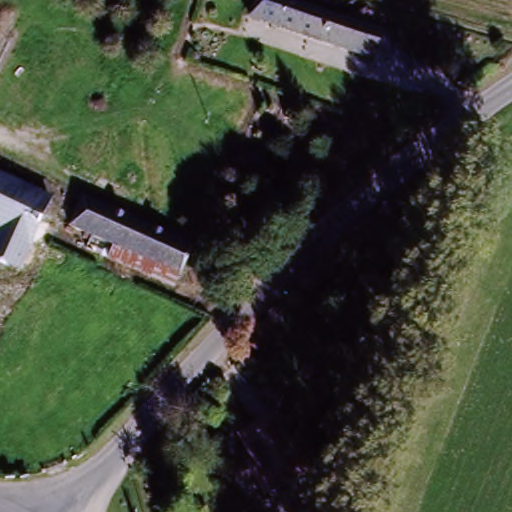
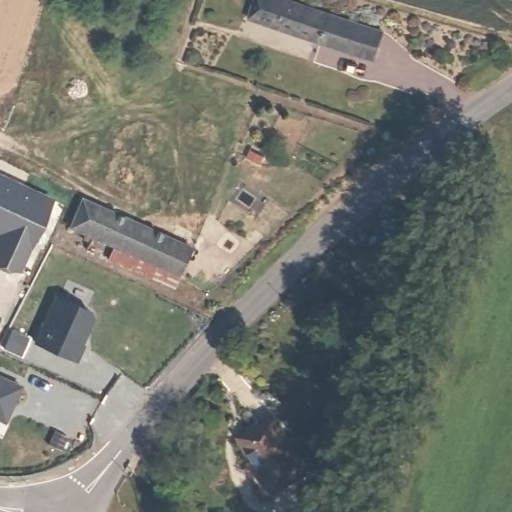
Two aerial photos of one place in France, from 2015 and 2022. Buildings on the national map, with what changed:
demolished [(221,0),(247,0),(245,10),(220,2),(221,0)]
unchanged [(385,38),(376,65),(247,25),(254,0),(259,0),(385,38)]
unchanged [(0,175),(49,200),(17,263),(0,254),(0,175)]
unchanged [(70,233),(82,204),(193,250),(181,278),(70,233)]
new [(58,297),(91,314),(93,320),(81,345),(83,347),(76,361),(36,342),(58,297)]
new [(6,423),(0,421),(0,376),(22,386),(6,423)]
unchanged [(327,485),(288,502),(263,448),(302,430),(327,485)]

